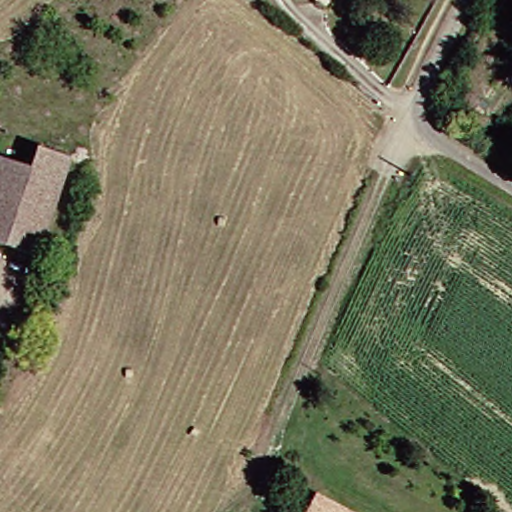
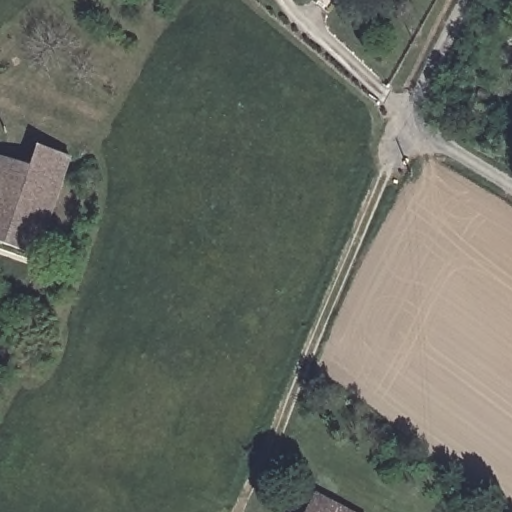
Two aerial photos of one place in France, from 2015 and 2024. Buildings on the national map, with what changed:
unchanged [(0,245),(0,159),(24,167),(31,146),(65,157),(31,255),(0,245)]
unchanged [(309,489),(352,512),(298,512),(309,489)]

